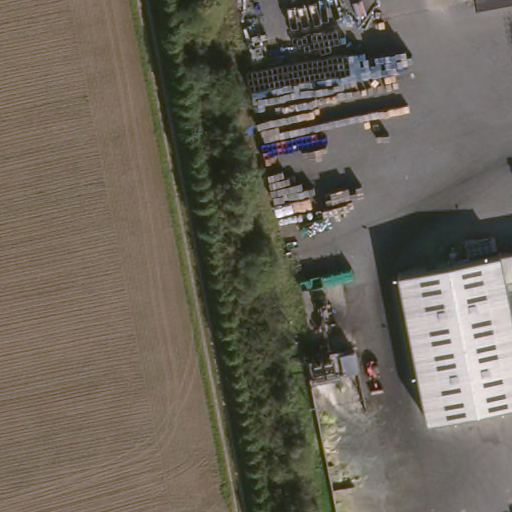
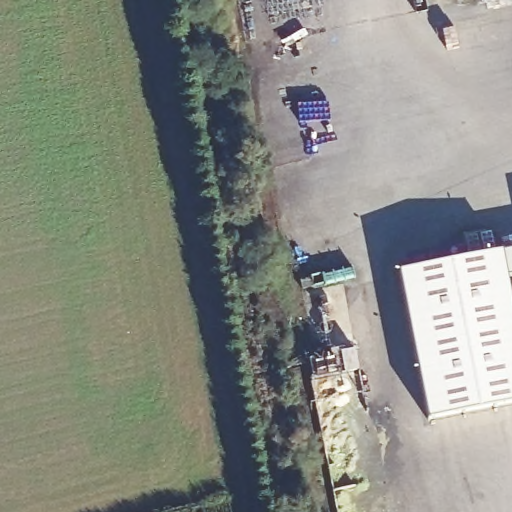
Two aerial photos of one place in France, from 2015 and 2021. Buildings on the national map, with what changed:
unchanged [(512,248),(512,280),(511,280),(512,283),(512,403),(430,420),(398,272),(512,248)]
unchanged [(365,362),(369,381),(352,384),(350,365),(365,362)]
unchanged [(341,367),(345,385),(325,390),(321,371),(341,367)]

